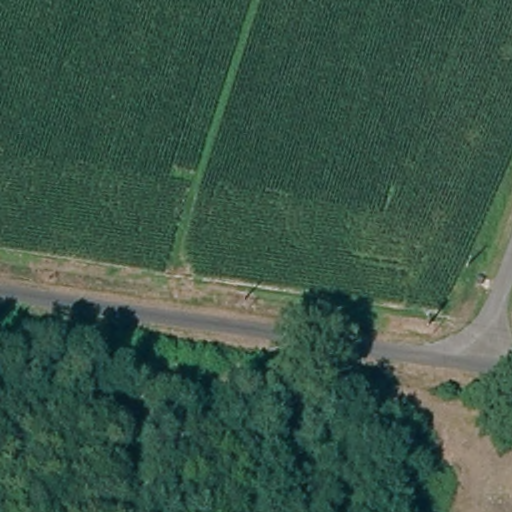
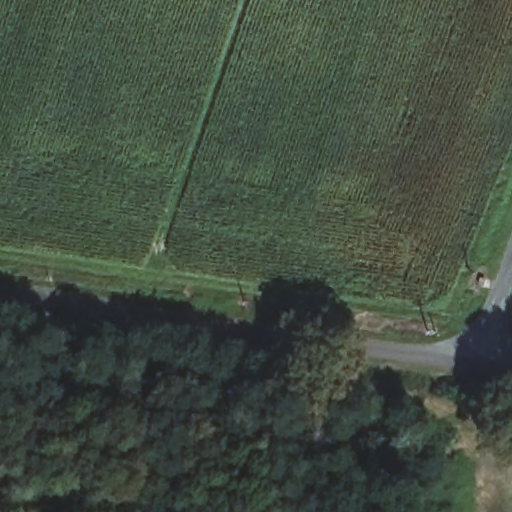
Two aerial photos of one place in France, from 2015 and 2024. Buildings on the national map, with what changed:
[]

